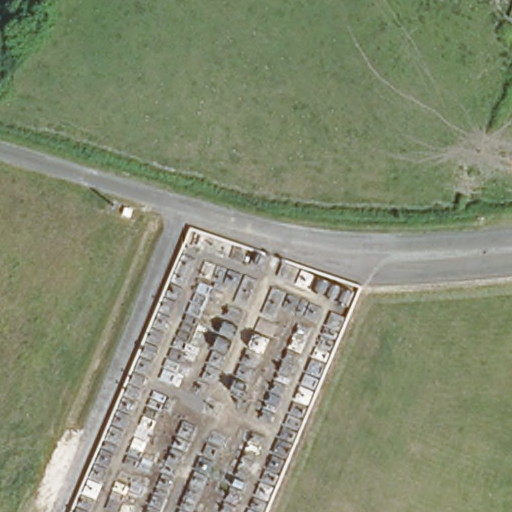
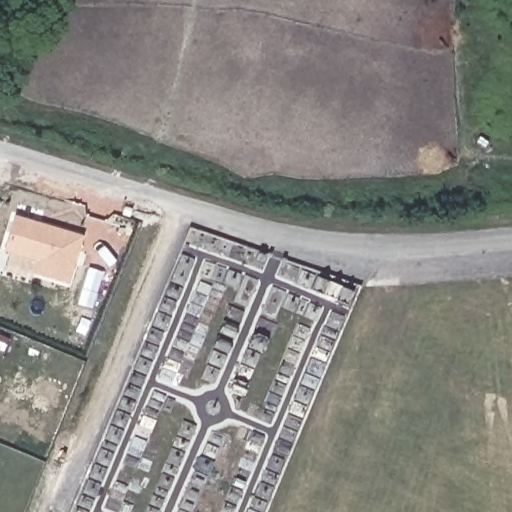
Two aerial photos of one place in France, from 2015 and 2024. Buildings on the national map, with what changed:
new [(39,259),(4,249),(13,220),(80,240),(67,284),(35,275),(39,259)]

